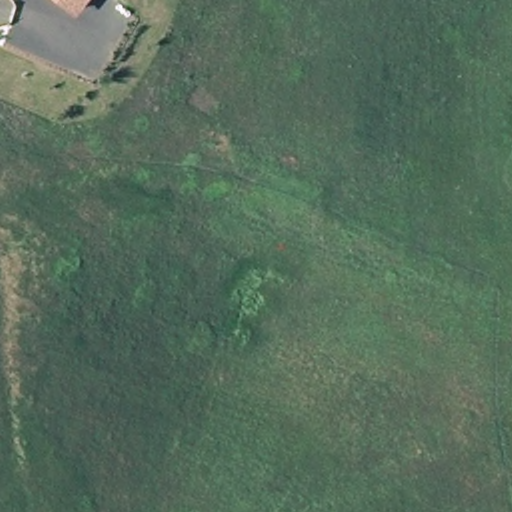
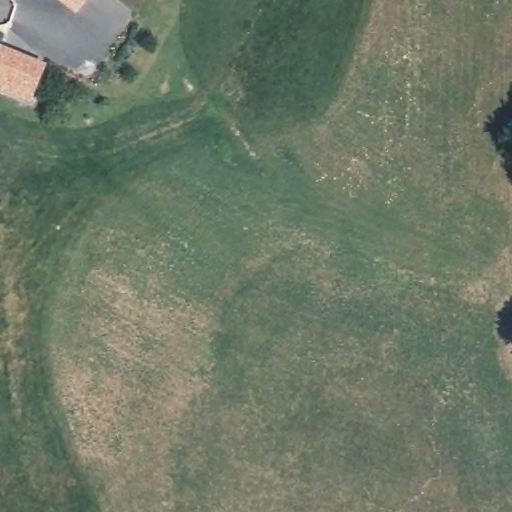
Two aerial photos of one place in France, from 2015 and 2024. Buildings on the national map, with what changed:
unchanged [(66,0),(91,0),(82,11),(66,0)]
new [(31,105),(0,92),(0,50),(1,46),(47,66),(31,105)]

